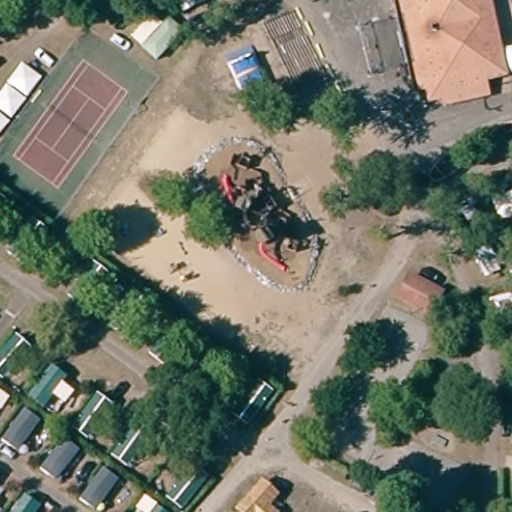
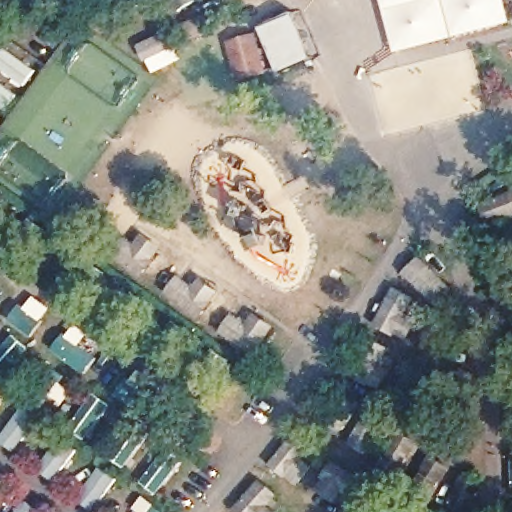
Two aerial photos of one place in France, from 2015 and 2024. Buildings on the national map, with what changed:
demolished [(487,97),(440,110),(438,99),(433,100),(432,92),(425,93),(406,0),(473,0),(489,72),(482,76),(485,86),(487,97)]
new [(267,43),(262,27),(297,14),(316,58),(282,72),(267,43)]
unchanged [(406,310),(390,300),(404,279),(434,299),(427,310),(421,320),(406,310)]
demolished [(275,497),(271,512),(253,512),(258,493),(275,497)]
demolished [(343,510),(343,512),(293,512),(297,497),(343,510)]

